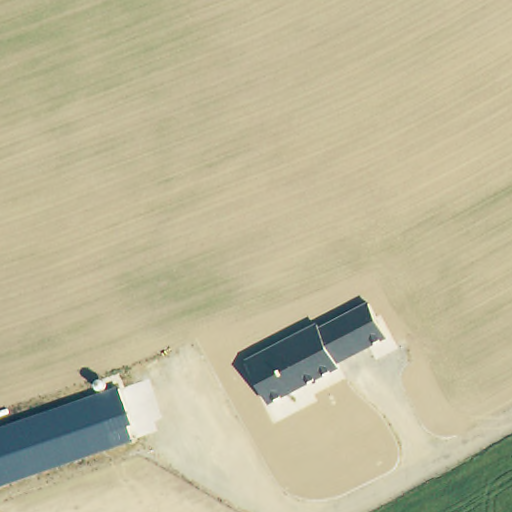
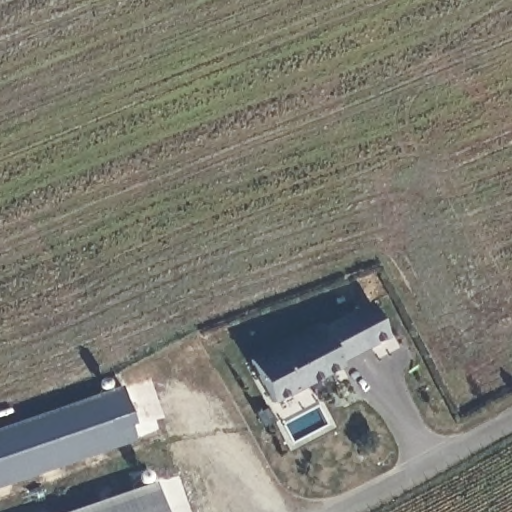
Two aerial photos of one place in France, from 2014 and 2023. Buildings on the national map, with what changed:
unchanged [(317,323),(320,328),(368,302),(387,337),(337,364),(340,367),(271,402),(247,359),(317,323)]
unchanged [(119,386),(132,423),(128,425),(134,441),(0,487),(0,427),(119,386)]
new [(163,512),(66,512),(153,481),(163,512)]

